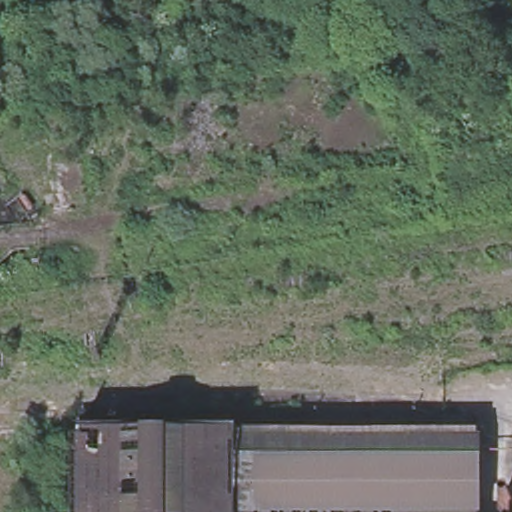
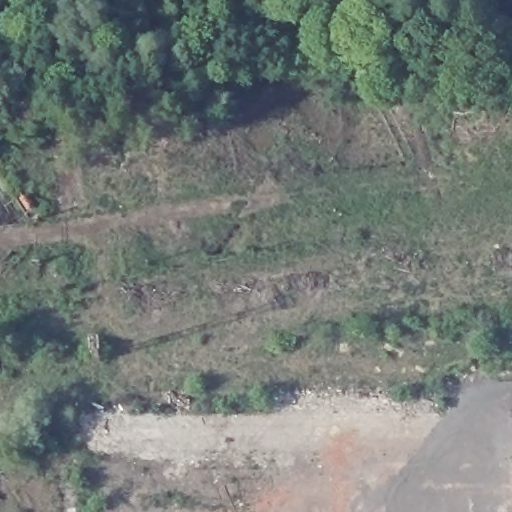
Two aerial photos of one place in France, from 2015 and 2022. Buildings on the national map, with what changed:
unchanged [(278,1),(280,12),(267,13),(266,2),(278,1)]
demolished [(388,436),(388,417),(464,417),(464,436),(475,436),(475,512),(351,512),(350,436),(388,436)]
demolished [(227,436),(227,435),(350,436),(351,512),(227,512),(227,436)]
demolished [(80,436),(227,436),(227,512),(80,512),(80,436)]
unchanged [(498,505),(500,502),(502,501),(505,500),(507,500),(510,501),(512,502),(512,512),(498,512),(497,511),(497,507),(498,505)]

